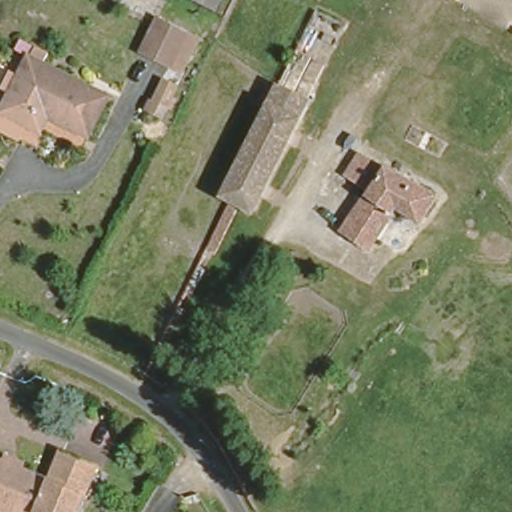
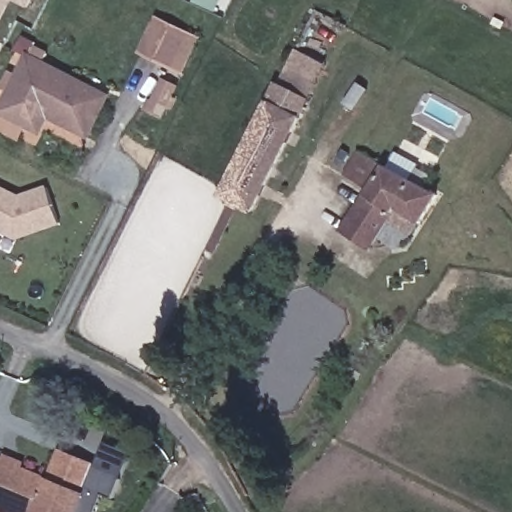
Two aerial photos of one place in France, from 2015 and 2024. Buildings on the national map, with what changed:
new [(6,0),(9,2),(0,20),(0,0),(6,0)]
new [(9,0),(32,0),(26,10),(9,0)]
unchanged [(184,73),(174,68),(146,54),(162,19),(190,34),(201,40),(184,73)]
unchanged [(28,121),(7,110),(0,106),(0,104),(10,85),(18,69),(27,50),(31,51),(36,41),(37,39),(42,42),(48,44),(47,46),(41,58),(105,91),(85,130),(47,109),(37,126),(28,121)]
unchanged [(231,193),(222,188),(269,94),(278,78),(308,94),(300,109),(251,203),(231,193)]
unchanged [(424,218),(393,201),(367,246),(338,229),(374,159),(439,190),(424,218)]
new [(17,200),(45,191),(56,227),(13,241),(0,234),(0,191),(17,200)]
unchanged [(44,478),(57,442),(97,457),(77,512),(58,512),(33,502),(30,509),(0,496),(0,459),(44,478)]
unchanged [(30,509),(33,502),(58,512),(0,512),(0,496),(30,509)]

